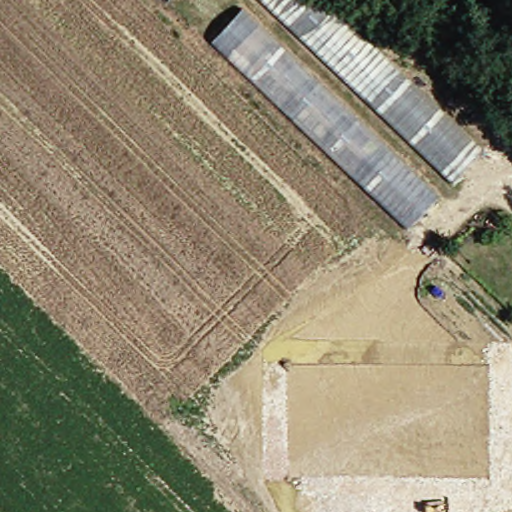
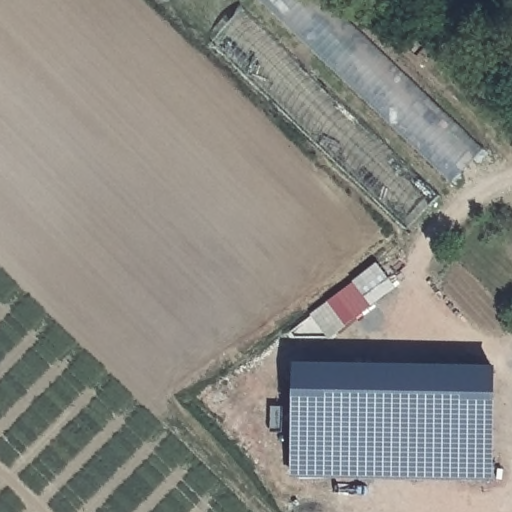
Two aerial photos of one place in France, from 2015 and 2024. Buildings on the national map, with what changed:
unchanged [(171,0),(173,0),(172,1),(171,0)]
unchanged [(267,0),(329,0),(493,149),(459,186),(267,0)]
unchanged [(217,43),(249,12),(440,196),(412,228),(217,43)]
new [(495,366),(492,481),(290,477),(293,364),(495,366)]

